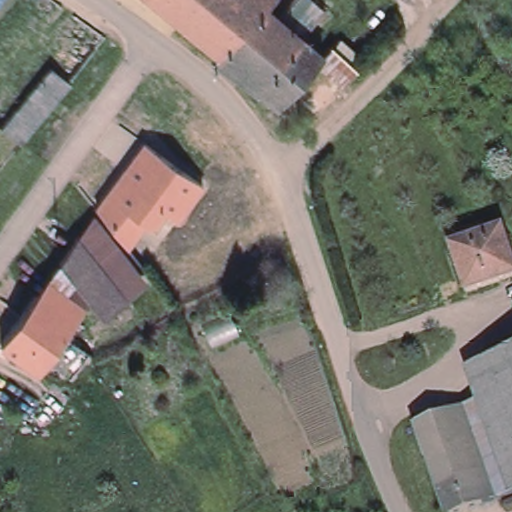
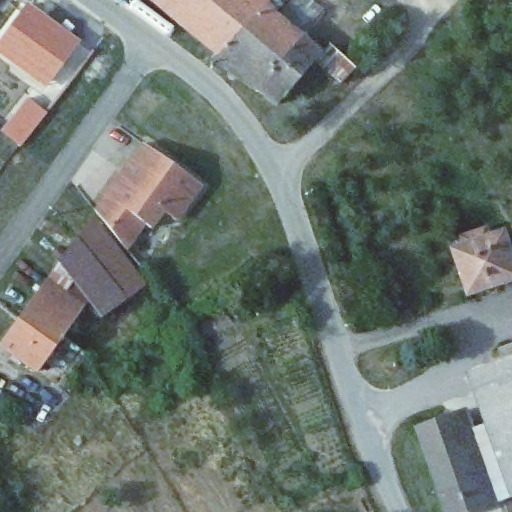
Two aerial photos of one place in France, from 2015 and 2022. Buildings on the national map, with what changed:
unchanged [(217,53),(152,0),(260,0),(267,5),(217,53)]
unchanged [(260,0),(271,0),(267,5),(260,0)]
unchanged [(301,37),(267,5),(271,0),(312,0),(324,11),(301,37)]
new [(46,88),(0,54),(0,38),(27,4),(80,42),(46,88)]
unchanged [(342,82),(312,114),(287,92),(277,103),(258,86),(256,88),(213,58),(217,53),(267,5),(301,37),(321,54),(329,45),(335,50),(355,68),(342,82)]
demolished [(65,80),(18,145),(0,130),(0,129),(44,69),(45,67),(65,80)]
unchanged [(202,184),(175,222),(165,211),(152,229),(147,224),(127,248),(95,208),(142,141),(202,184)]
unchanged [(126,299),(82,243),(77,236),(92,215),(145,284),(142,286),(126,299)]
unchanged [(459,245),(457,237),(486,227),(488,236),(502,231),(512,264),(512,279),(466,294),(451,248),(459,245)]
unchanged [(76,238),(82,243),(126,299),(101,317),(90,302),(58,262),(76,238)]
unchanged [(58,262),(90,302),(79,316),(74,323),(35,294),(47,276),(58,262)]
unchanged [(35,294),(74,323),(60,342),(21,314),(35,294)]
unchanged [(60,342),(37,372),(0,345),(0,344),(21,314),(60,342)]
unchanged [(503,360),(499,349),(512,345),(512,422),(491,364),(503,360)]
unchanged [(464,374),(491,364),(512,422),(512,497),(509,498),(475,403),(464,374)]
unchanged [(22,421),(28,414),(51,383),(69,396),(46,426),(40,434),(22,421)]
unchanged [(475,403),(509,498),(485,507),(451,412),(475,403)]
unchanged [(451,412),(485,507),(471,512),(446,512),(415,425),(451,412)]

